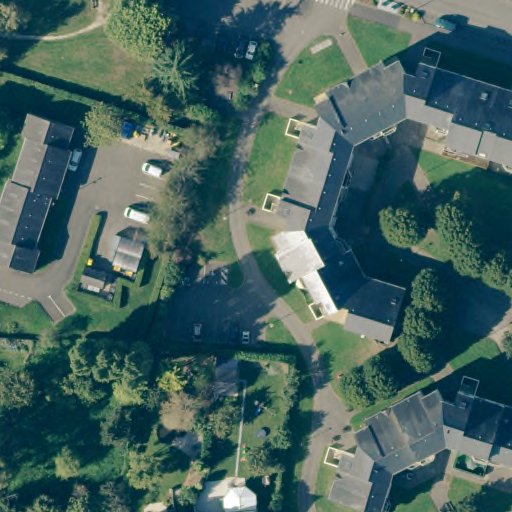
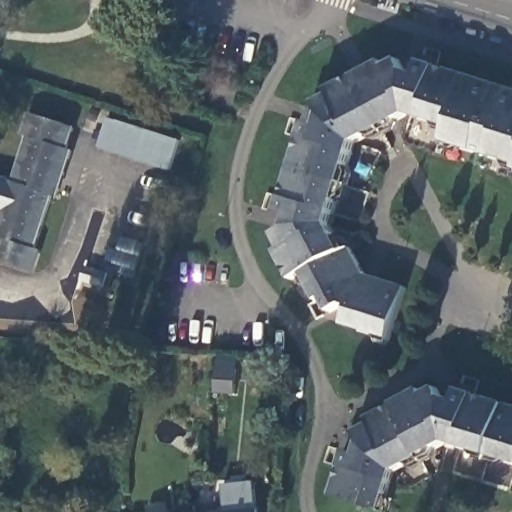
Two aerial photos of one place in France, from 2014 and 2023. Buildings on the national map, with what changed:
unchanged [(451,127),(409,115),(370,136),(356,144),(330,227),(344,252),(351,249),(367,277),(406,289),(392,336),(381,332),(374,335),(345,326),(351,308),(346,307),(331,313),(324,299),(319,301),(312,289),(314,281),(309,272),(292,281),(278,252),(283,250),(276,236),(291,227),(293,220),(278,215),(283,199),(301,140),(306,124),(321,129),(325,120),(317,106),(330,98),(327,92),(383,63),(386,69),(399,62),(408,77),(416,80),(421,64),(437,68),(512,92),(512,164),(447,144),(451,127)]
unchanged [(72,122),(65,143),(71,145),(56,192),(51,191),(35,244),(40,246),(33,266),(0,256),(0,233),(3,226),(0,225),(0,204),(9,176),(14,177),(29,131),(23,129),(30,108),(68,120),(72,122)]
new [(173,172),(100,147),(108,117),(182,141),(173,172)]
unchanged [(108,271),(103,283),(81,277),(86,263),(108,271)]
unchanged [(34,343),(34,357),(8,355),(9,342),(34,343)]
unchanged [(238,367),(235,390),(216,388),(218,365),(238,367)]
unchanged [(512,403),(512,459),(448,439),(393,467),(390,479),(387,492),(379,497),(376,507),(331,492),(339,463),(344,448),(360,453),(363,443),(355,428),(369,422),(366,416),(421,386),(424,392),(438,383),(447,401),(455,402),(460,387),(475,392),(512,403)]
unchanged [(230,497),(238,487),(248,486),(259,494),(261,508),(261,509),(261,512),(231,512),(231,511),(230,497)]

